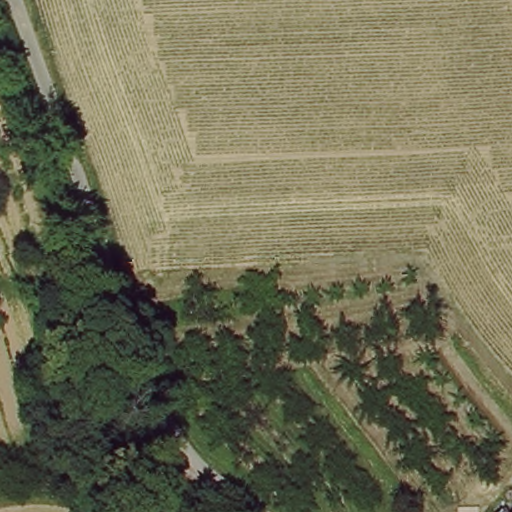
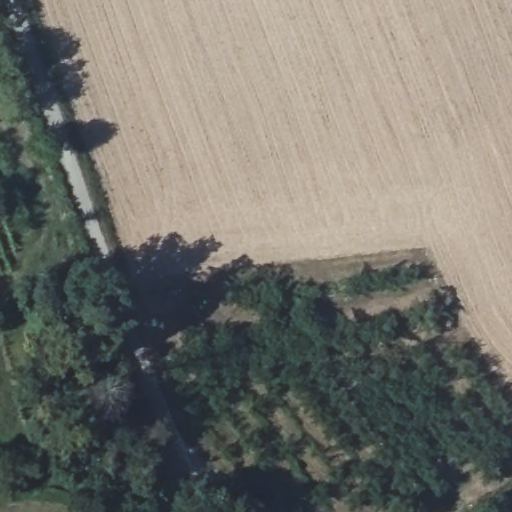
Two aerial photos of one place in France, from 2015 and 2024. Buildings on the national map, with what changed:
[]

